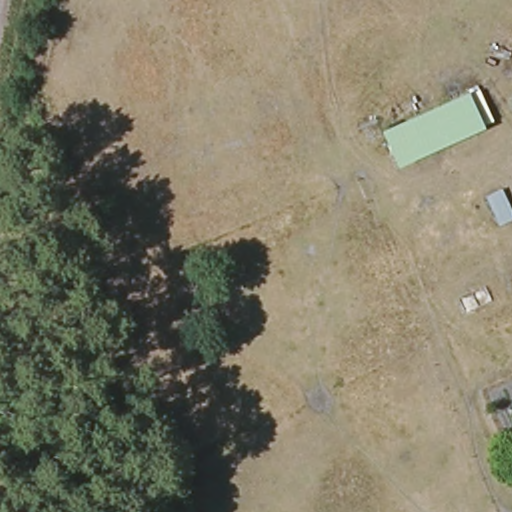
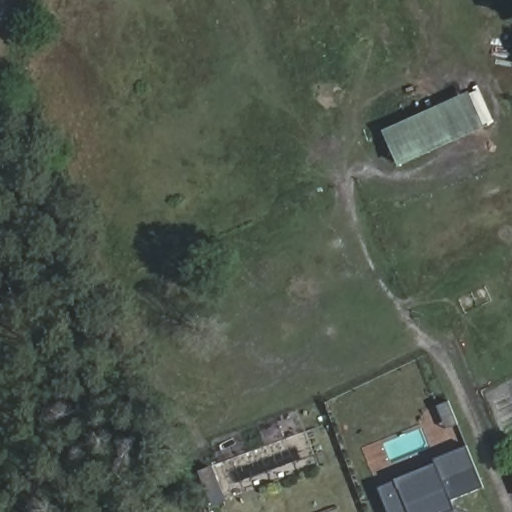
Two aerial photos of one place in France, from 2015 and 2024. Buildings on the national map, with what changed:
unchanged [(467,93),(483,127),(395,164),(382,129),(467,93)]
demolished [(512,211),(512,218),(494,224),(482,195),(501,186),(512,211)]
new [(455,509),(462,512),(388,512),(377,487),(395,479),(435,463),(434,459),(466,446),(484,486),(451,498),(455,509)]

